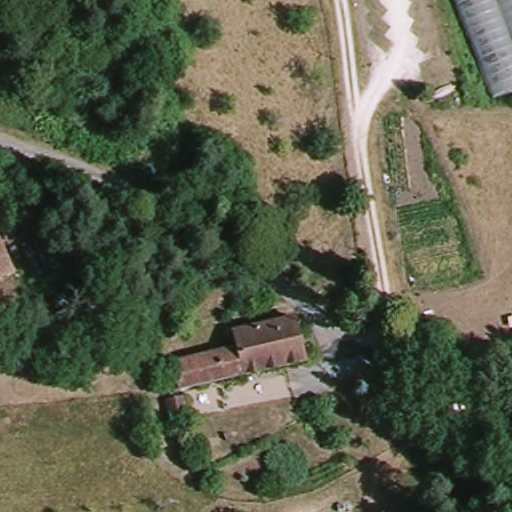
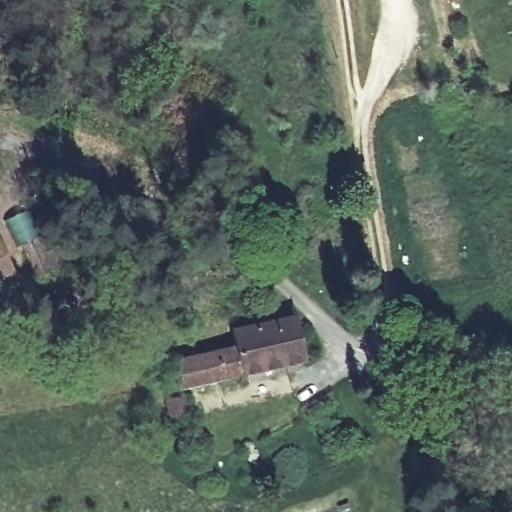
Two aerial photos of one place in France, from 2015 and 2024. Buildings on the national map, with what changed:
demolished [(375,21),(373,0),(420,0),(422,17),(375,21)]
demolished [(496,97),(457,0),(512,0),(512,91),(496,97)]
unchanged [(210,198),(186,202),(182,174),(208,171),(210,198)]
unchanged [(0,279),(0,248),(11,275),(0,279)]
unchanged [(308,362),(180,387),(174,360),(235,349),(231,334),(299,320),(308,362)]
unchanged [(0,373),(0,347),(3,346),(13,366),(0,373)]
unchanged [(188,415),(170,419),(170,411),(162,413),(158,402),(184,396),(188,415)]

